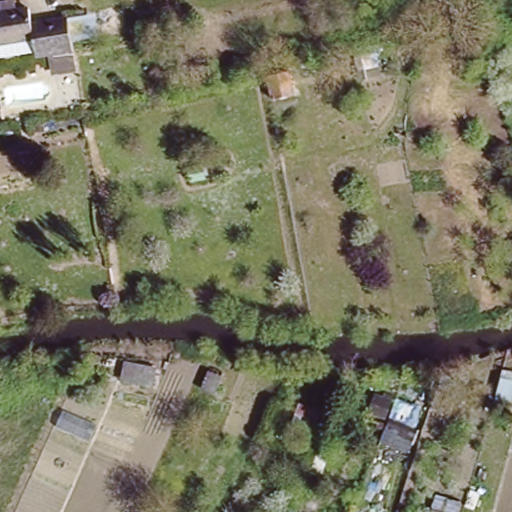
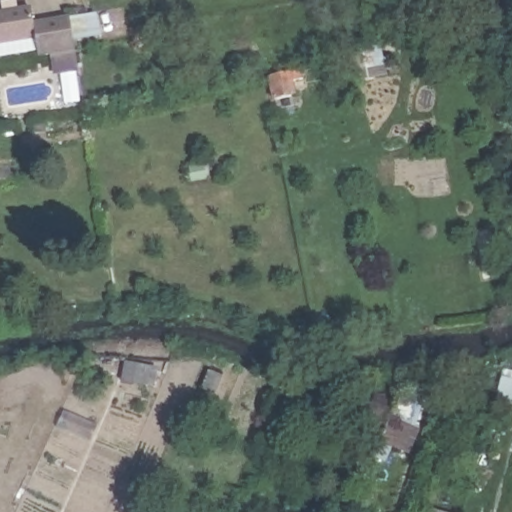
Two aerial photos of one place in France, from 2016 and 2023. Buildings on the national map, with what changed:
unchanged [(0,3),(0,1),(8,0),(16,0),(18,9),(30,7),(32,23),(69,17),(75,48),(39,54),(35,39),(0,44),(0,12),(2,12),(0,3)]
unchanged [(295,95),(276,98),(271,75),(290,72),(295,95)]
unchanged [(204,165),(205,178),(191,179),(189,166),(204,165)]

